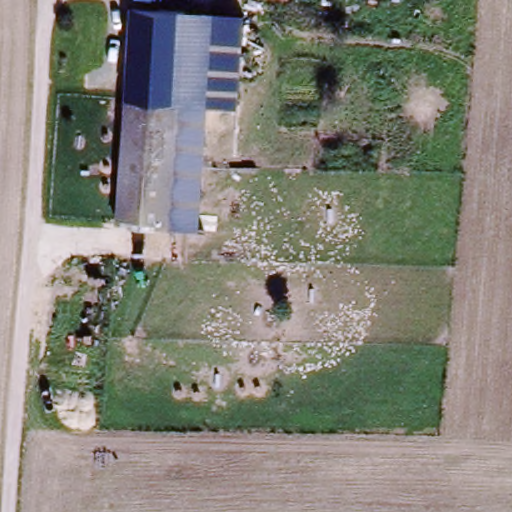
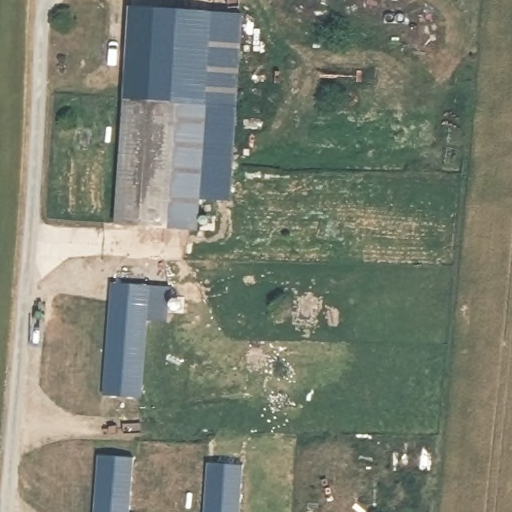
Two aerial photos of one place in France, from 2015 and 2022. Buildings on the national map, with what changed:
unchanged [(242,16),(237,110),(208,109),(200,234),(115,226),(128,9),(242,16)]
new [(169,322),(148,321),(143,398),(105,396),(113,283),(170,286),(169,322)]
new [(98,452),(136,455),(132,508),(95,505),(98,452)]
new [(247,463),(243,512),(205,512),(209,461),(247,463)]
new [(146,512),(94,512),(95,505),(146,510),(146,512)]

